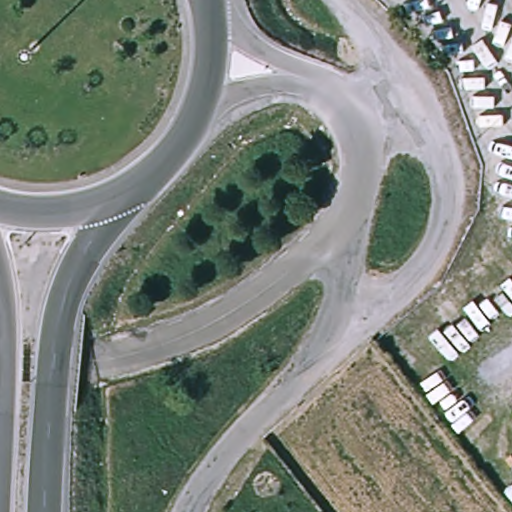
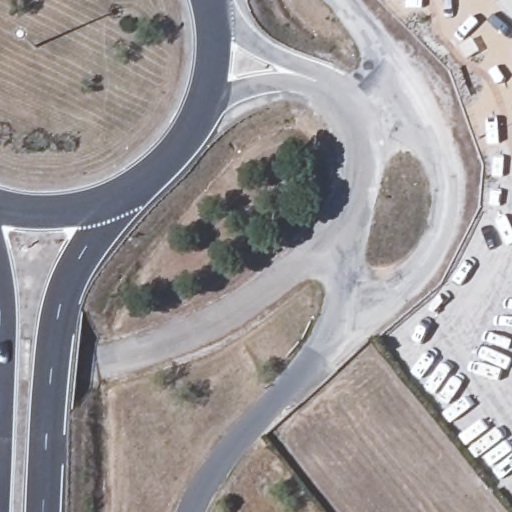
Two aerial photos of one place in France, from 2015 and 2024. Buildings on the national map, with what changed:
[]

